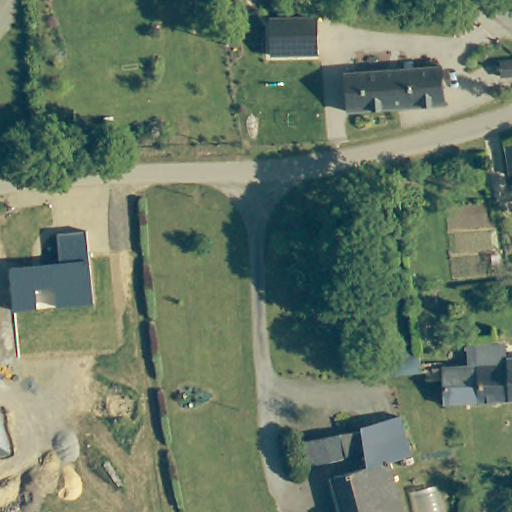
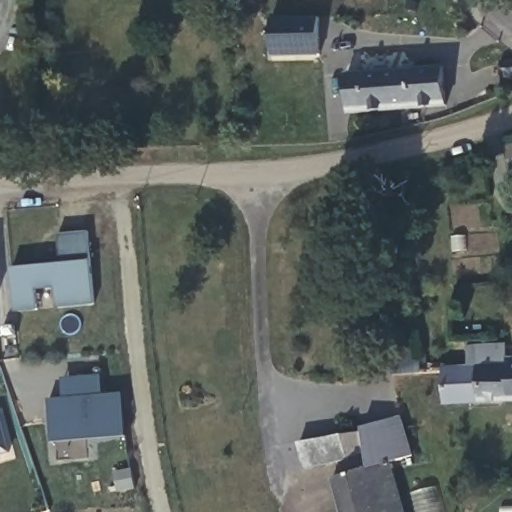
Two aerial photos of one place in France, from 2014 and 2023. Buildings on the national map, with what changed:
unchanged [(326,53),(278,54),(277,14),(325,13),(326,53)]
unchanged [(511,57),(512,57),(512,71),(511,57)]
unchanged [(380,70),(457,62),(461,101),(382,110),(363,112),(358,73),(380,70)]
unchanged [(55,309),(54,287),(37,288),(39,310),(16,312),(11,266),(61,261),(58,234),(87,230),(94,305),(55,309)]
unchanged [(473,367),(472,347),(505,345),(506,362),(507,369),(508,380),(509,398),(509,403),(477,405),(473,367)]
unchanged [(422,375),(396,376),(394,356),(421,355),(422,375)]
unchanged [(507,369),(506,362),(512,362),(512,403),(509,403),(509,398),(508,380),(507,369)]
unchanged [(442,407),(439,369),(473,367),(477,405),(442,407)]
new [(53,443),(49,400),(64,398),(61,379),(102,375),(104,395),(124,393),(127,436),(53,443)]
unchanged [(0,410),(2,409),(12,454),(0,458),(0,410)]
unchanged [(366,470),(363,455),(329,467),(302,470),(297,448),(297,446),(360,433),(359,429),(397,418),(409,457),(392,462),(387,463),(366,470)]
unchanged [(401,512),(338,512),(330,482),(366,470),(387,463),(401,512)]

